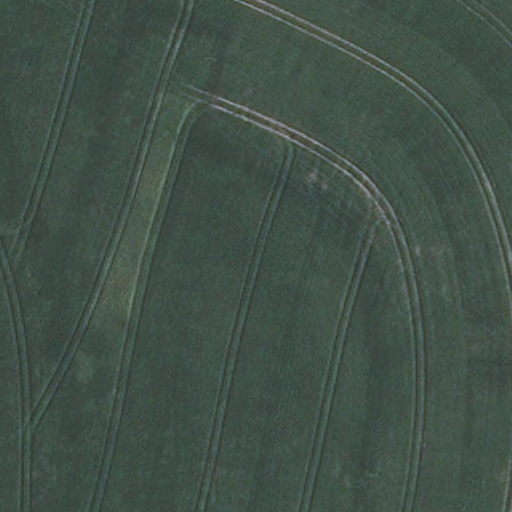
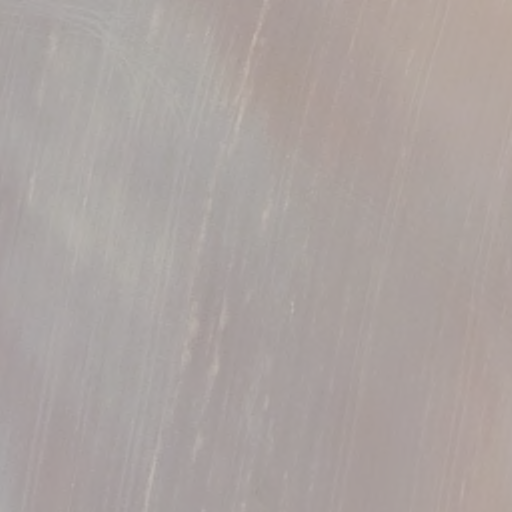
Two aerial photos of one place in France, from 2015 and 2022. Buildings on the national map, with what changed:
[]

